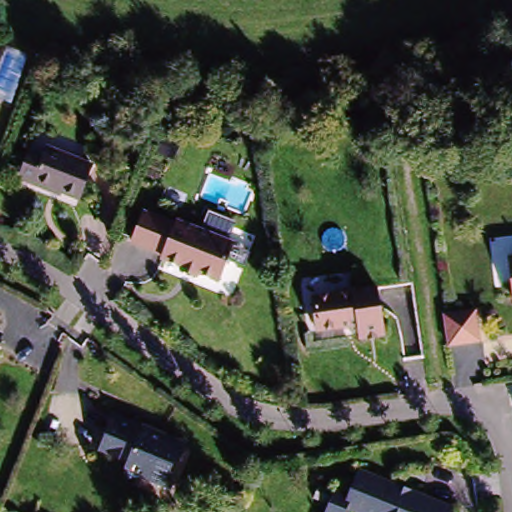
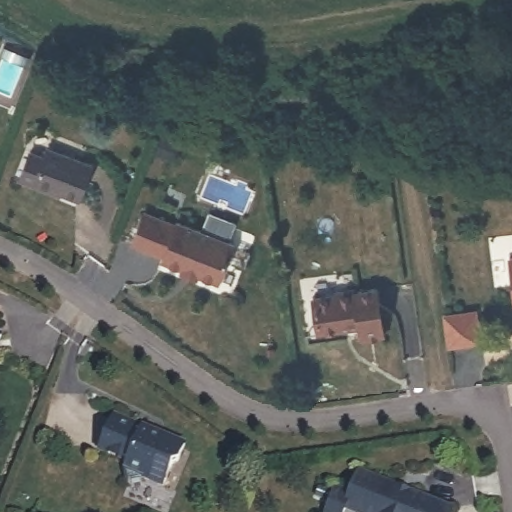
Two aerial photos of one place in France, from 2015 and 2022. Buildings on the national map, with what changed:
unchanged [(87,166),(74,202),(30,186),(16,181),(26,155),(39,160),(43,150),(87,166)]
unchanged [(171,224),(173,220),(228,245),(211,282),(191,273),(189,277),(174,270),(176,266),(156,257),(157,254),(126,240),(139,210),(171,224)]
unchanged [(506,260),(512,259),(512,303),(506,260)]
unchanged [(331,293),(331,291),(351,288),(351,291),(373,288),(379,336),(356,339),(354,324),(344,325),(344,323),(337,323),(338,327),(313,331),(308,296),(331,293)]
unchanged [(478,316),(482,346),(451,350),(447,320),(478,316)]
unchanged [(180,442),(173,460),(167,462),(158,484),(137,475),(122,478),(120,468),(123,460),(94,448),(109,412),(180,442)]
unchanged [(340,512),(322,512),(329,496),(334,482),(349,488),(358,465),(395,480),(408,485),(452,501),(447,512),(367,512),(344,502),(340,512)]

